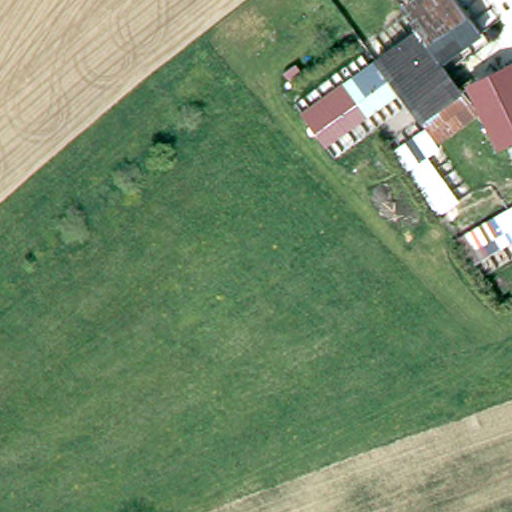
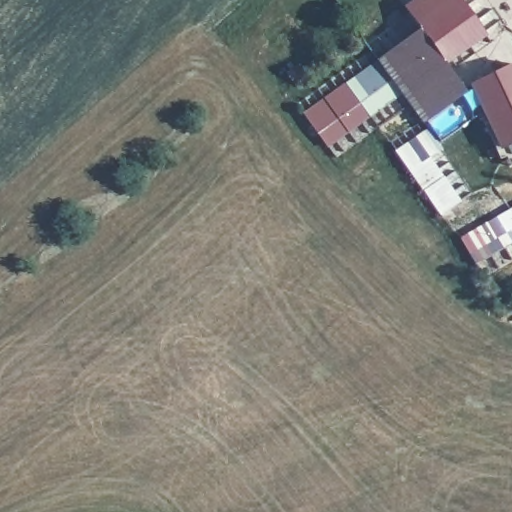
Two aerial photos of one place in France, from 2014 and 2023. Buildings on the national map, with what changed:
unchanged [(412,22),(398,2),(401,0),(459,0),(476,23),(435,53),(454,80),(412,110),(395,85),(364,107),(340,74),(412,22)]
unchanged [(491,136),(466,71),(512,53),(512,55),(512,128),(491,136)]
unchanged [(340,74),(364,107),(323,137),(299,103),(340,74)]
unchanged [(419,125),(461,191),(433,209),(390,142),(419,125)]
unchanged [(476,264),(457,232),(512,204),(512,245),(476,264)]

